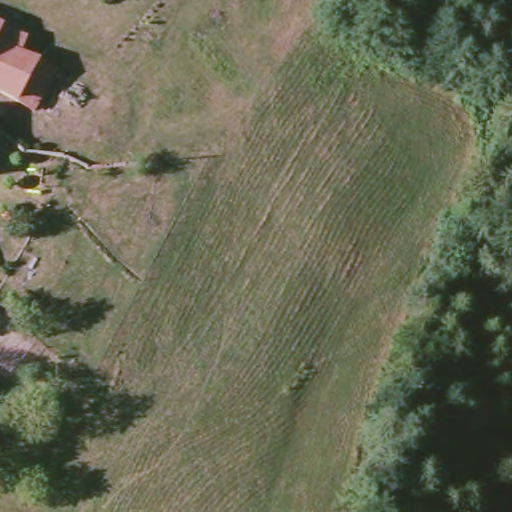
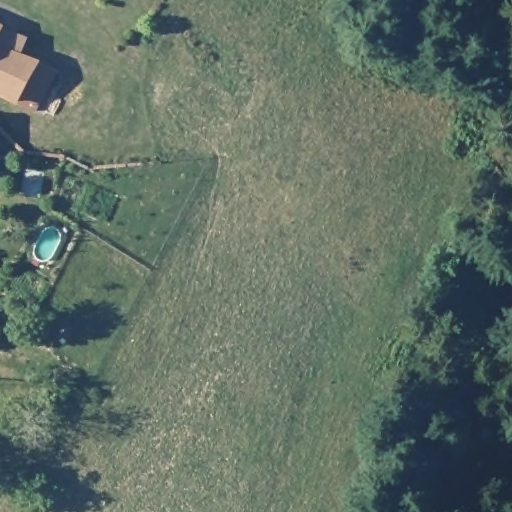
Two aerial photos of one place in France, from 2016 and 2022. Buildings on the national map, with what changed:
unchanged [(24,106),(0,94),(0,25),(4,27),(31,39),(26,53),(45,63),(58,74),(40,112),(24,106)]

